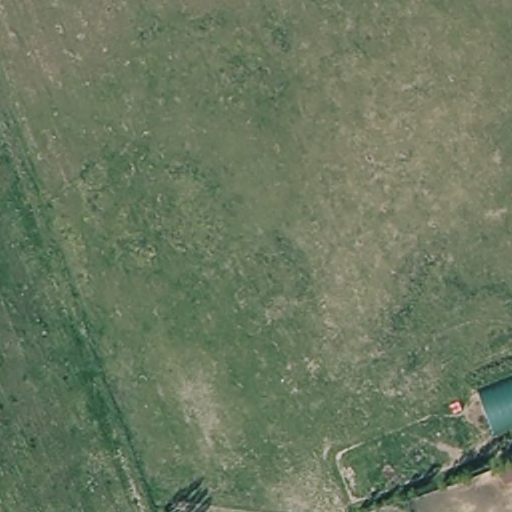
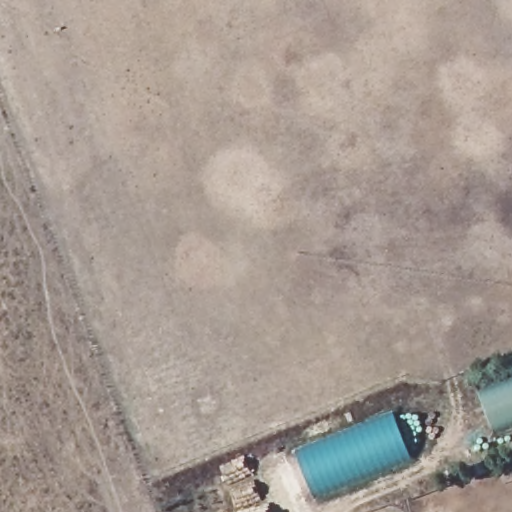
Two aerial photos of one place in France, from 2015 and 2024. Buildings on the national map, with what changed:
unchanged [(496,435),(478,389),(512,376),(512,428),(496,435)]
new [(395,416),(412,457),(315,498),(296,455),(395,416)]

